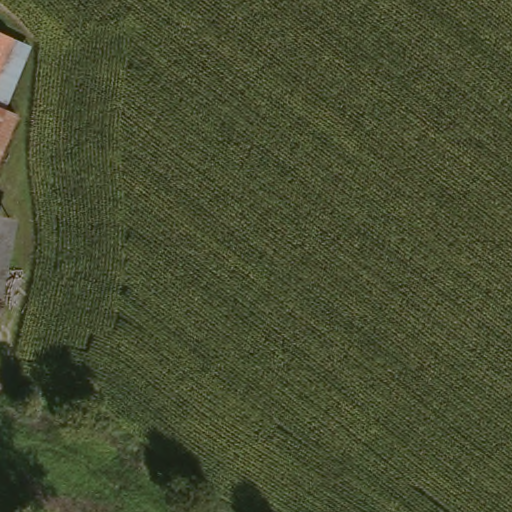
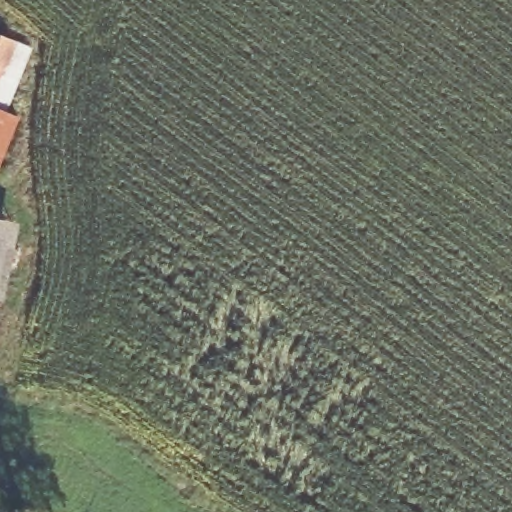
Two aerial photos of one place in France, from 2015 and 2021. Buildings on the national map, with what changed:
unchanged [(4,78),(0,77),(0,31),(20,40),(4,78)]
unchanged [(0,77),(4,78),(0,89),(0,77)]
unchanged [(1,175),(0,175),(0,108),(24,117),(1,175)]
unchanged [(6,297),(0,296),(0,215),(20,220),(6,297)]

